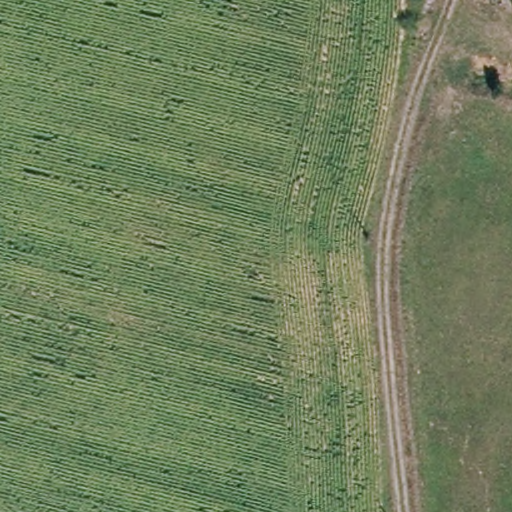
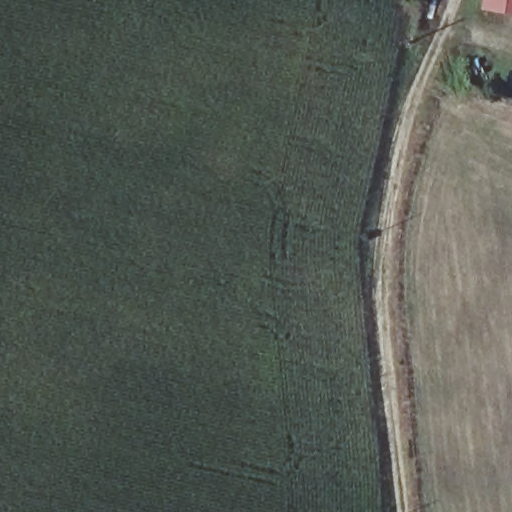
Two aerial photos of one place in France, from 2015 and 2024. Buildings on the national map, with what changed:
new [(485,9),(487,0),(512,0),(512,14),(485,9)]
demolished [(511,16),(497,14),(498,0),(512,0),(512,10),(511,16)]

